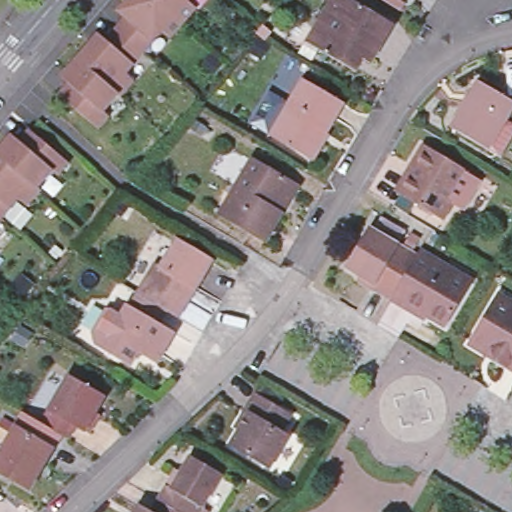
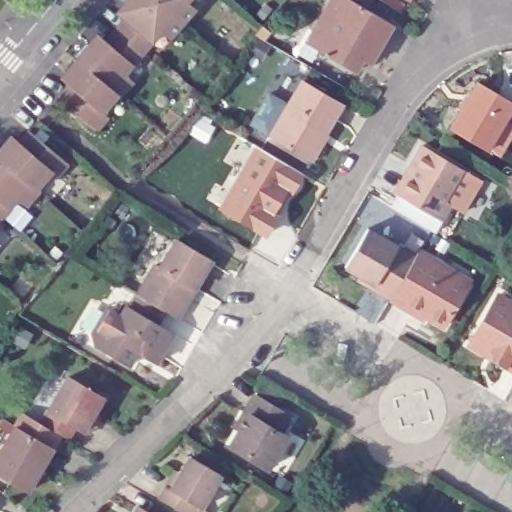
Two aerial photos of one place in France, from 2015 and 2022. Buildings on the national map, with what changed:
unchanged [(120,94),(117,92),(119,90),(79,56),(90,43),(101,31),(108,38),(117,27),(127,15),(120,9),(127,0),(160,0),(182,20),(170,35),(162,28),(154,38),(144,50),(133,62),(125,71),(133,78),(120,94)]
unchanged [(182,20),(160,0),(190,0),(196,5),(182,20)]
unchanged [(386,24),(363,66),(354,62),(349,73),(310,52),(317,40),(306,34),(324,0),(342,0),(386,24)]
unchanged [(409,5),(405,12),(384,0),(401,0),(409,5)]
unchanged [(97,126),(60,93),(70,82),(62,75),(66,71),(79,56),(119,90),(117,92),(103,109),(108,113),(97,126)]
unchanged [(341,108),(324,136),(322,135),(307,160),(269,138),(302,84),(341,108)]
unchanged [(476,84),(512,105),(512,108),(487,151),(450,129),(476,84)]
unchanged [(269,93),(289,105),(269,138),(250,126),(269,93)]
unchanged [(64,159),(60,164),(52,172),(48,168),(32,186),(0,156),(0,142),(4,137),(9,132),(16,139),(22,131),(26,126),(64,159)]
unchanged [(463,214),(451,207),(442,222),(396,194),(422,150),(463,174),(482,184),(463,214)]
unchanged [(35,187),(22,203),(14,196),(7,205),(0,212),(0,156),(32,186),(35,187)]
unchanged [(291,186),(276,213),(281,215),(265,243),(219,216),(250,163),(291,186)]
unchanged [(371,289),(373,285),(344,268),(366,230),(416,258),(391,300),(371,289)]
unchanged [(157,371),(147,366),(137,363),(131,373),(110,361),(109,354),(102,357),(97,354),(93,342),(109,317),(121,324),(127,314),(130,316),(137,302),(136,301),(152,272),(159,275),(175,247),(209,266),(192,296),(185,292),(181,299),(184,301),(172,322),(165,318),(158,331),(174,339),(157,371)]
unchanged [(444,269),(441,274),(467,289),(445,327),(419,312),(417,315),(391,300),(416,258),(418,254),(444,269)]
unchanged [(491,360),(493,356),(471,343),(494,302),(510,311),(512,308),(512,372),(491,360)]
unchanged [(92,438),(85,433),(77,446),(51,430),(37,422),(62,379),(76,387),(77,384),(112,404),(92,438)]
unchanged [(289,419),(280,436),(287,439),(269,469),(232,448),(249,418),(245,416),(254,399),(289,419)]
unchanged [(29,469),(38,474),(27,494),(0,479),(0,454),(15,429),(42,445),(29,469)]
unchanged [(200,512),(159,512),(154,509),(162,495),(167,498),(187,464),(217,482),(200,512)]
unchanged [(151,512),(154,509),(159,512),(151,512)]

